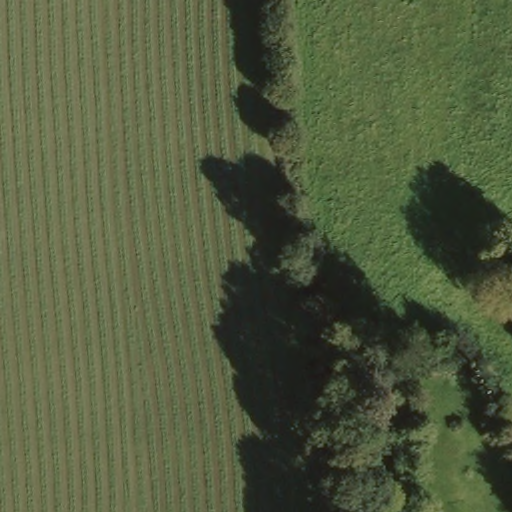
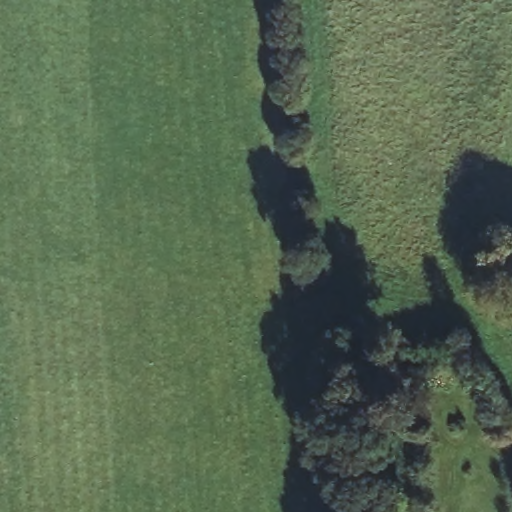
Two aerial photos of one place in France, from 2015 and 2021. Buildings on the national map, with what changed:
[]

